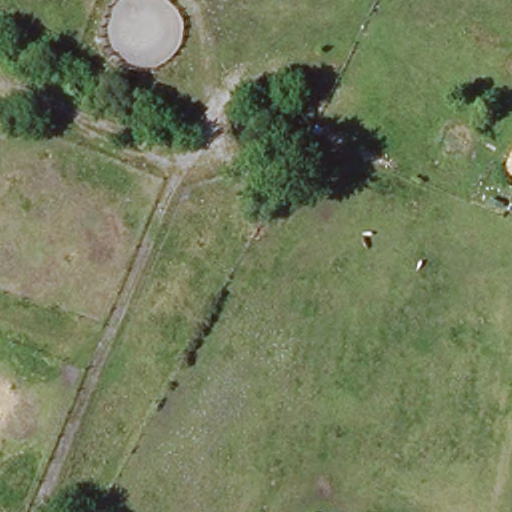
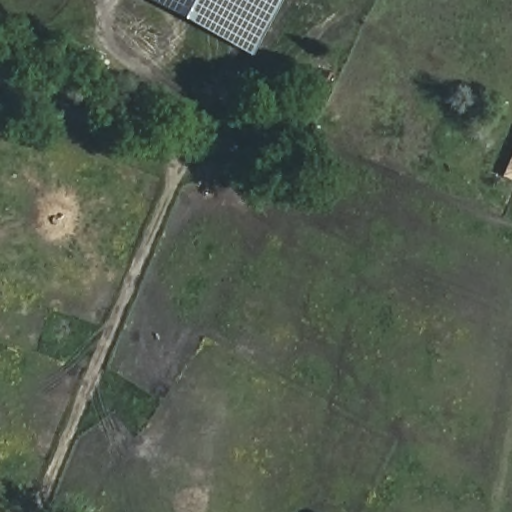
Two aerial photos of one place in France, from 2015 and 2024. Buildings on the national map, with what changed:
new [(146,0),(279,0),(249,55),(146,0)]
unchanged [(500,172),(512,152),(512,178),(500,172)]

